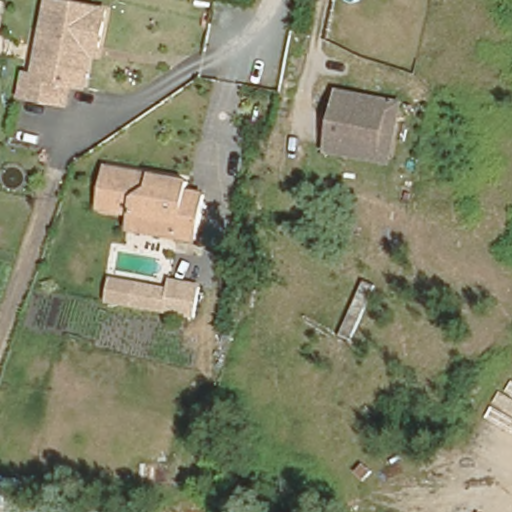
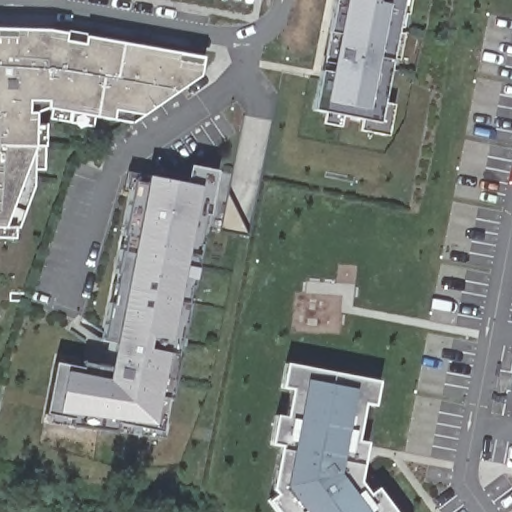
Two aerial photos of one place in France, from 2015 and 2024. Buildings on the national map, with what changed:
demolished [(68,81),(64,102),(21,94),(26,66),(35,67),(48,0),(64,0),(105,8),(97,44),(84,42),(76,82),(68,81)]
new [(313,110),(336,0),(405,0),(381,123),(313,110)]
new [(131,124),(47,109),(36,114),(36,146),(35,178),(19,227),(4,228),(0,228),(0,28),(49,30),(204,57),(200,76),(131,124)]
demolished [(386,163),(322,153),(332,91),(397,101),(386,163)]
new [(162,440),(44,425),(57,356),(109,368),(114,345),(101,342),(135,173),(149,176),(186,183),(189,165),(217,171),(162,440)]
demolished [(142,180),(149,182),(150,177),(181,183),(180,193),(197,197),(189,242),(168,238),(171,223),(90,207),(97,167),(142,176),(142,180)]
demolished [(204,284),(196,320),(106,304),(111,277),(170,288),(172,277),(204,284)]
new [(277,492),(272,487),(281,447),(271,444),(277,415),(286,417),(291,389),(280,387),(286,363),(378,382),(373,407),(363,405),(357,440),(366,441),(358,478),(368,492),(376,487),(394,512),(279,512),(269,499),(277,492)]

